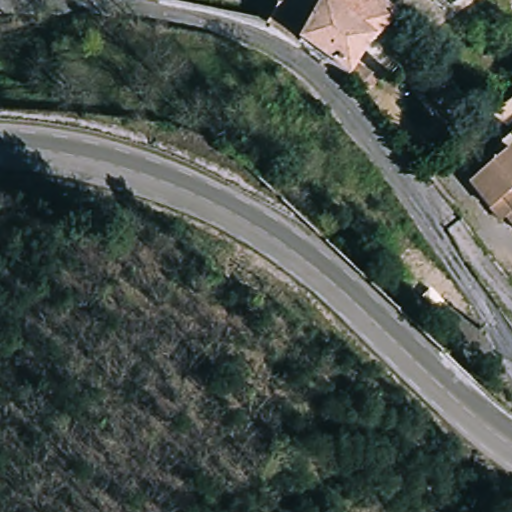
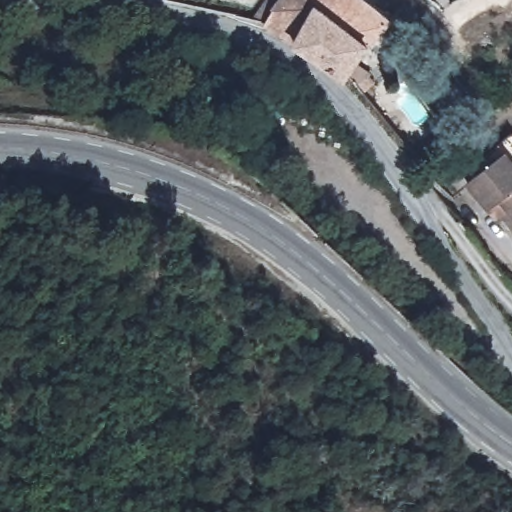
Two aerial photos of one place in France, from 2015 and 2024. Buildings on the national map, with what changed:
unchanged [(380,75),(380,78),(387,83),(380,92),(258,16),(269,0),(366,0),(395,18),(362,68),(380,75)]
unchanged [(468,181),(510,155),(512,157),(512,226),(506,229),(468,181)]

